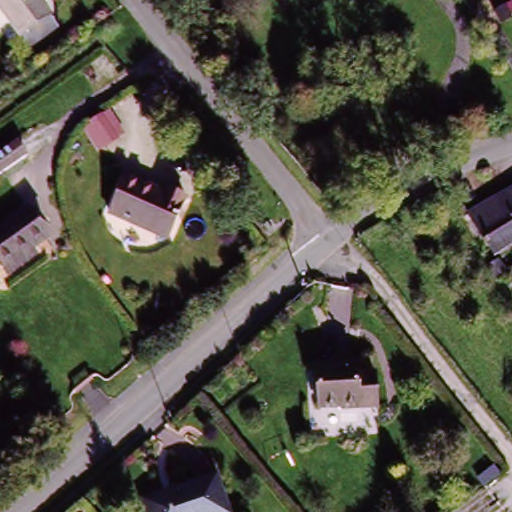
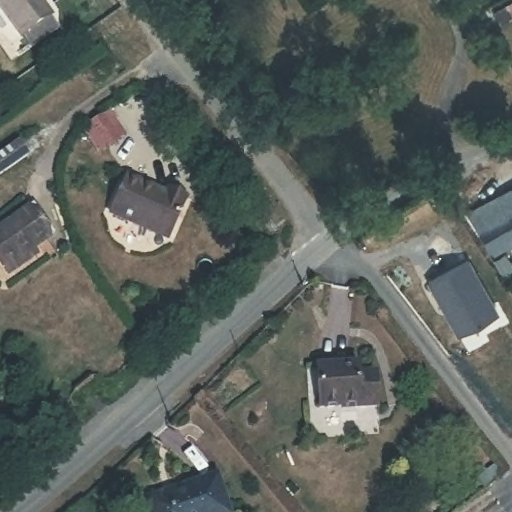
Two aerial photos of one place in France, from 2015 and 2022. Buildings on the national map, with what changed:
unchanged [(53,22),(24,42),(0,10),(0,5),(3,2),(2,0),(38,0),(53,22)]
unchanged [(101,152),(84,125),(102,116),(118,141),(101,152)]
unchanged [(0,171),(0,152),(14,142),(22,155),(0,171)]
unchanged [(112,215),(128,179),(168,196),(171,190),(189,197),(170,241),(112,215)]
unchanged [(492,262),(468,222),(512,196),(512,251),(492,262)]
unchanged [(0,259),(0,232),(33,209),(53,236),(36,247),(41,254),(11,274),(6,268),(0,259)]
new [(468,262),(497,317),(460,339),(427,286),(468,262)]
unchanged [(359,367),(360,380),(376,378),(380,412),(359,413),(358,406),(321,408),(316,371),(359,367)]
unchanged [(230,512),(148,512),(145,503),(218,479),(230,512)]

